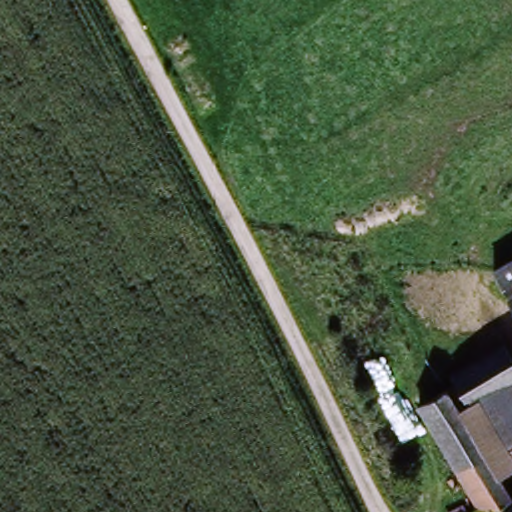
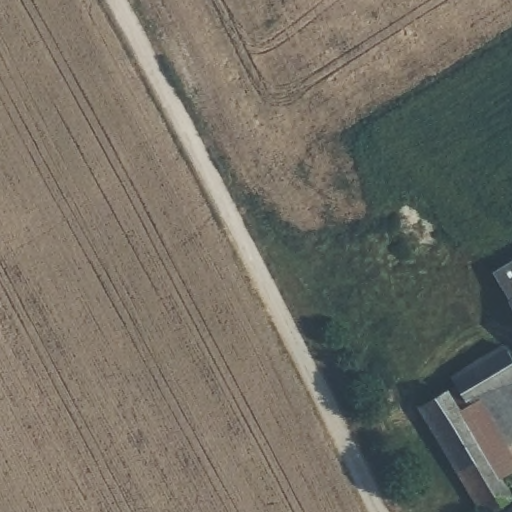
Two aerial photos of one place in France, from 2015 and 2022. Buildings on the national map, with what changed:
unchanged [(512,263),(512,309),(493,274),(512,263)]
unchanged [(417,405),(504,343),(512,354),(512,495),(485,512),(482,512),(417,405)]

